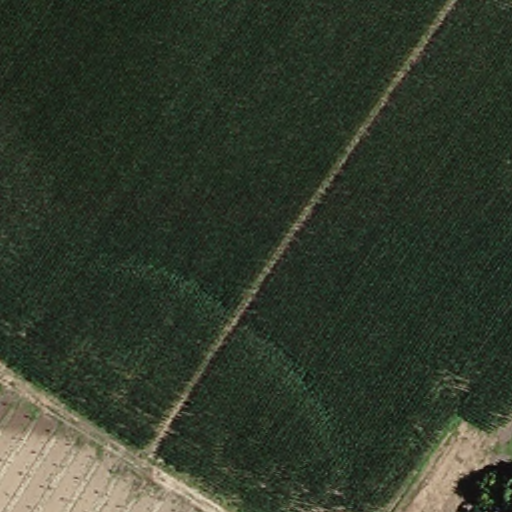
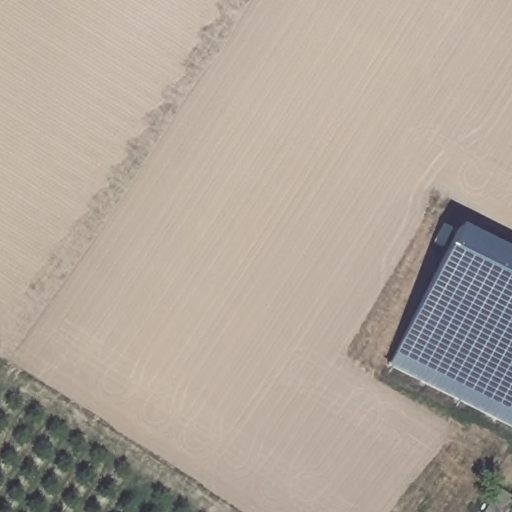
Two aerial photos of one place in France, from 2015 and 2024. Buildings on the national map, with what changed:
new [(389,367),(456,229),(512,258),(512,429),(389,367)]
new [(506,508),(504,512),(485,512),(491,498),(506,508)]

